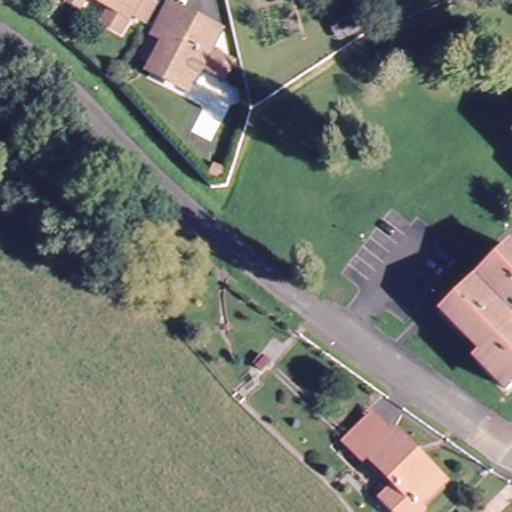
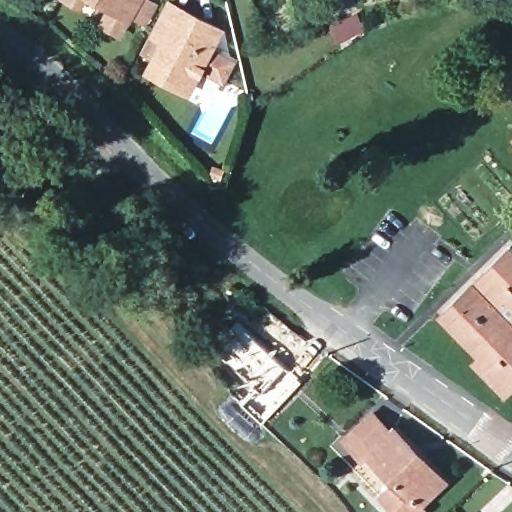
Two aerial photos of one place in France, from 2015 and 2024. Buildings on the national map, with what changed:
unchanged [(77,11),(60,2),(61,0),(82,0),(77,11)]
unchanged [(145,27),(132,20),(122,38),(104,28),(112,14),(88,0),(143,0),(142,2),(155,9),(145,27)]
unchanged [(156,57),(157,54),(142,46),(165,0),(168,0),(184,8),(181,14),(193,21),(196,16),(219,28),(209,46),(232,58),(223,76),(200,64),(189,86),(166,73),(151,66),(156,57)]
unchanged [(477,359),(483,353),(470,339),(443,313),(510,247),(512,249),(512,385),(507,390),(477,359)]
unchanged [(423,511),(422,512),(396,512),(383,499),(397,485),(369,457),(365,461),(348,445),(345,441),(372,414),(381,423),(391,433),(393,430),(440,477),(445,483),(420,507),(423,511)]

